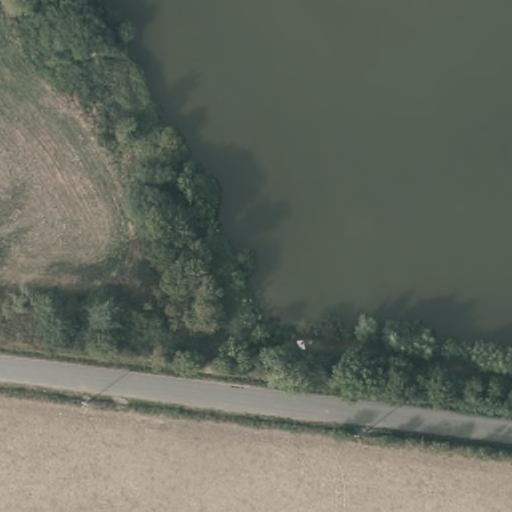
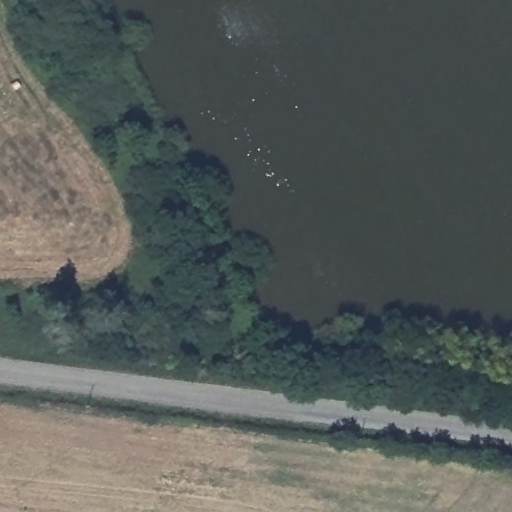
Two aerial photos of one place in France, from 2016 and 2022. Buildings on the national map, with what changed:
[]

